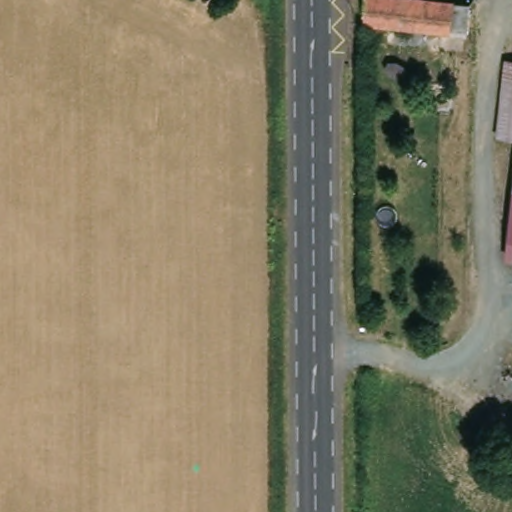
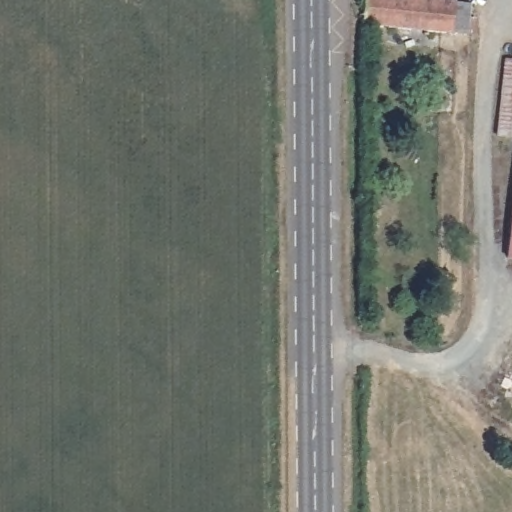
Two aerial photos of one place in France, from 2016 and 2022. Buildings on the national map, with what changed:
unchanged [(472,34),(457,32),(378,23),(369,22),(372,0),(436,0),(461,3),(476,5),(472,34)]
unchanged [(508,59),(512,60),(512,137),(498,135),(508,59)]
unchanged [(512,238),(512,259),(510,259),(512,238)]

